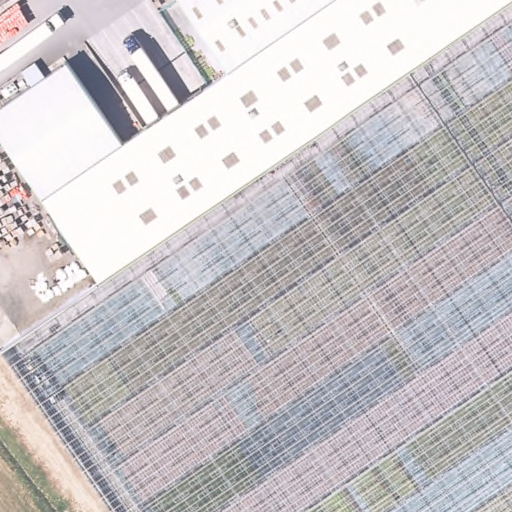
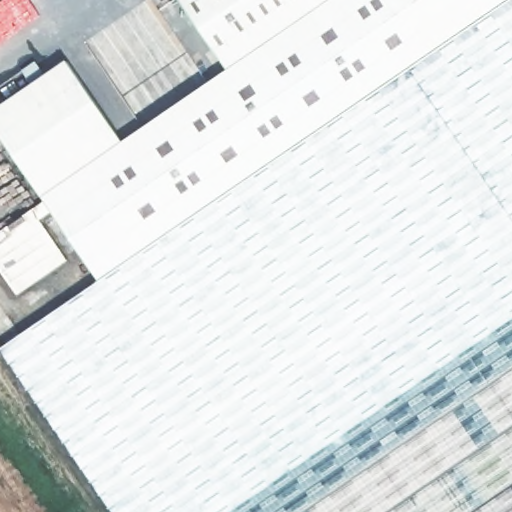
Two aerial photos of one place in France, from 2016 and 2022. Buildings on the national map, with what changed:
unchanged [(0,139),(0,111),(63,68),(122,151),(225,76),(172,0),(490,0),(496,9),(101,285),(0,139)]
unchanged [(490,0),(508,0),(496,9),(490,0)]
unchanged [(508,0),(512,0),(512,32),(496,9),(508,0)]
unchanged [(0,376),(0,356),(101,285),(496,9),(512,32),(512,512),(95,512),(0,376)]

